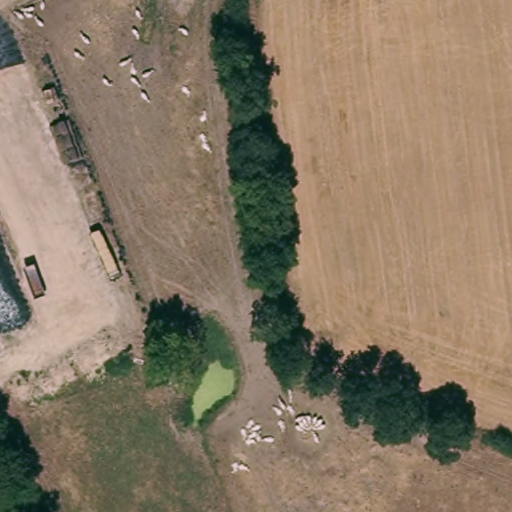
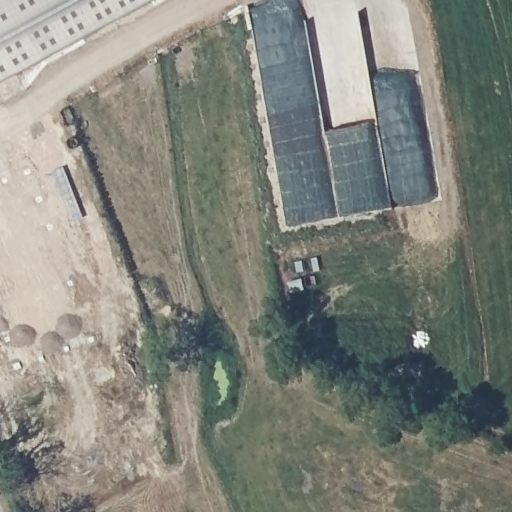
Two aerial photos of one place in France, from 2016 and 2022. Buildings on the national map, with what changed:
new [(156,0),(0,85),(0,0),(156,0)]

